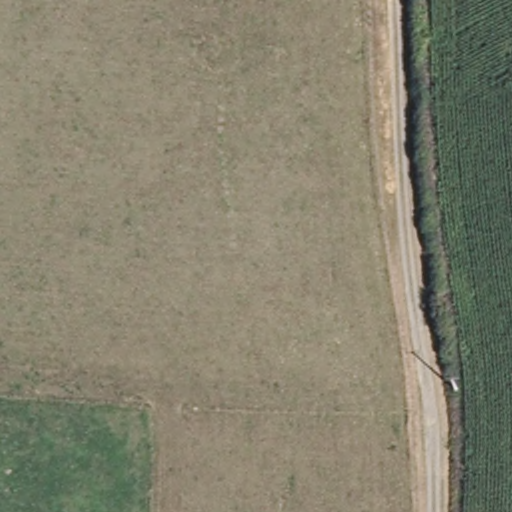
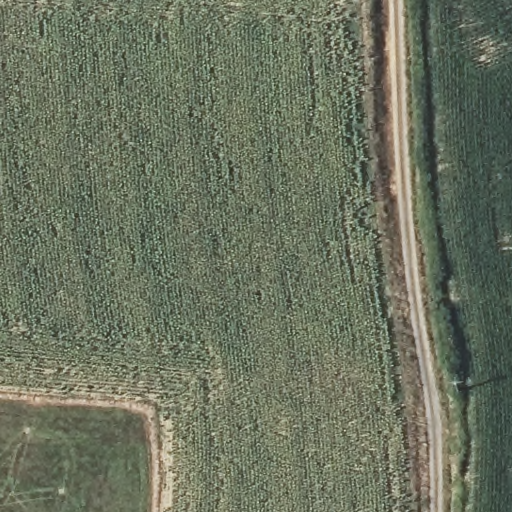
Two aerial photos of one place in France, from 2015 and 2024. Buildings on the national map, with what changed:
[]

